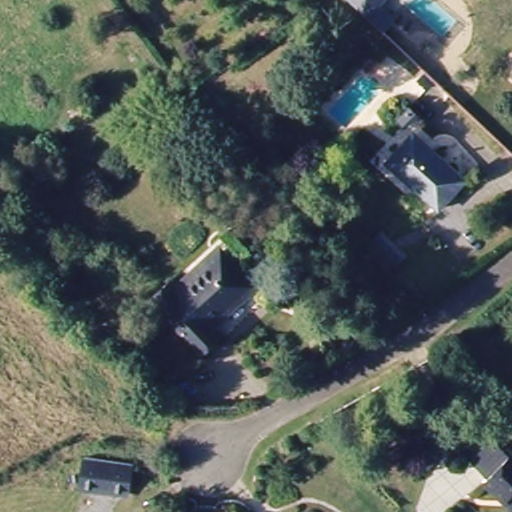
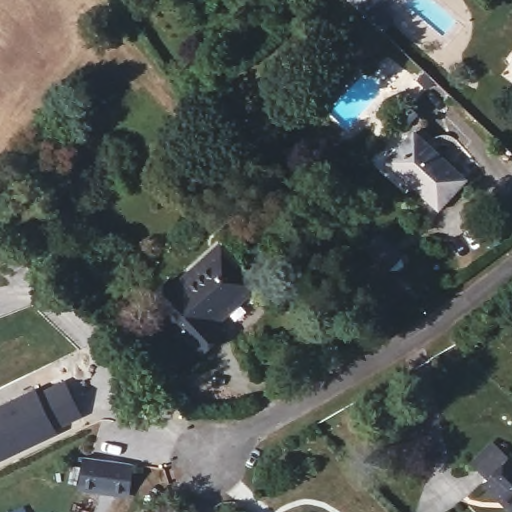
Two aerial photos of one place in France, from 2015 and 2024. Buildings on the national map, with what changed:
new [(349,0),(380,0),(367,16),(349,0)]
unchanged [(419,128),(467,180),(440,207),(391,154),(419,128)]
unchanged [(216,329),(227,344),(207,362),(153,303),(173,283),(176,286),(216,247),(225,256),(256,290),(216,329)]
unchanged [(377,249),(395,267),(381,281),(363,263),(377,249)]
new [(77,416),(51,428),(53,433),(0,458),(0,408),(35,393),(37,398),(64,384),(77,416)]
unchanged [(492,479),(477,464),(497,442),(512,456),(512,455),(512,504),(489,482),(492,479)]
unchanged [(130,462),(126,497),(78,489),(81,456),(130,462)]

